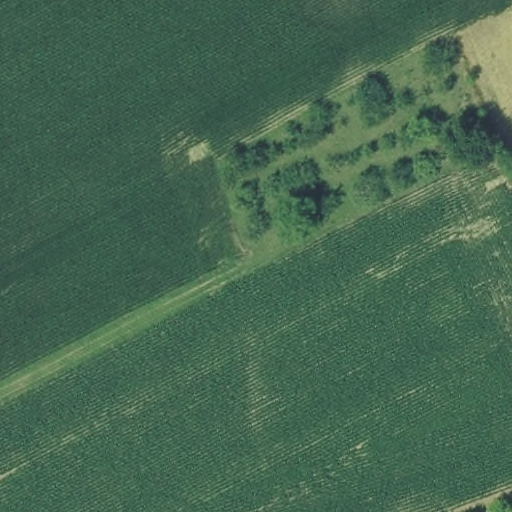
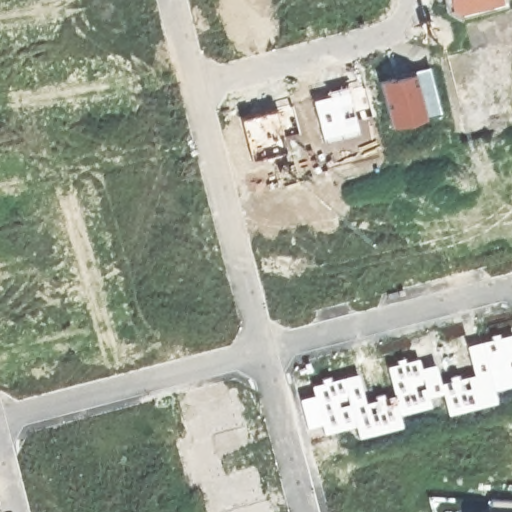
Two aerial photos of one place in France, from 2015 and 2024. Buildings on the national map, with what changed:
new [(501,1),(460,14),(449,7),(447,0),(501,0),(501,1)]
new [(415,74),(413,70),(429,66),(442,113),(426,117),(390,125),(380,82),(415,74)]
new [(329,96),(327,90),(347,85),(346,82),(361,79),(370,110),(355,113),(361,133),(323,142),(312,99),(329,96)]
new [(276,111),(274,101),(290,97),(292,106),(300,134),(281,139),(285,153),(250,160),(241,118),(276,111)]
new [(320,378),(332,375),(333,380),(357,373),(366,403),(376,400),(375,396),(383,393),(385,398),(393,396),(386,365),(397,363),(395,359),(405,357),(405,360),(420,357),(422,366),(436,364),(441,382),(451,380),(450,376),(459,374),(460,377),(473,374),(466,346),(491,339),(490,333),(499,332),(500,336),(512,334),(512,388),(495,392),(499,404),(448,417),(442,394),(430,397),(432,407),(401,416),(405,428),(359,440),(356,428),(325,437),(322,427),(307,431),(298,399),(314,395),(310,385),(322,383),(320,378)]
new [(512,512),(488,512),(488,499),(512,500),(512,512)]

